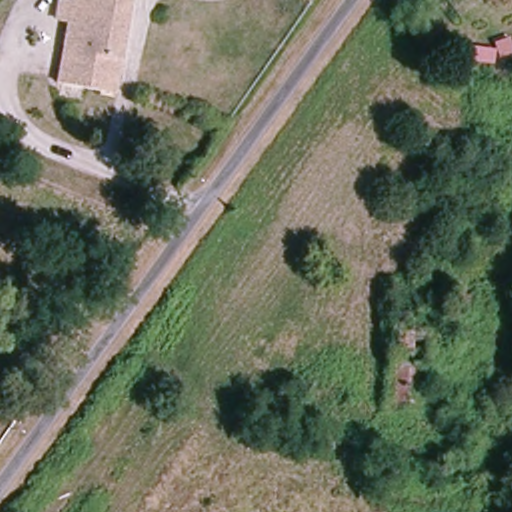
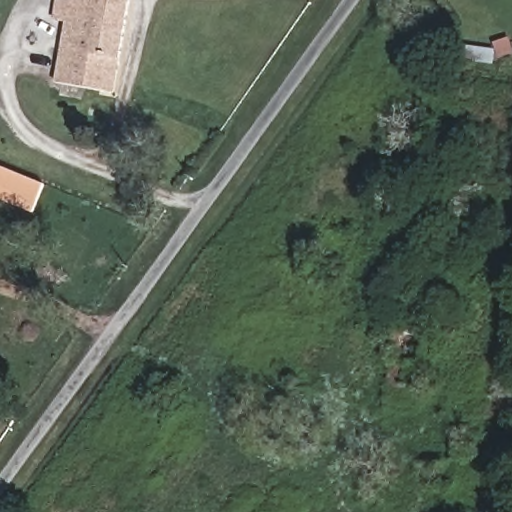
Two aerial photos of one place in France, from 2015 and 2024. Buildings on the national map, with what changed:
unchanged [(55,84),(64,21),(54,19),(58,0),(131,0),(115,94),(55,84)]
new [(0,199),(0,166),(45,185),(34,213),(0,199)]

